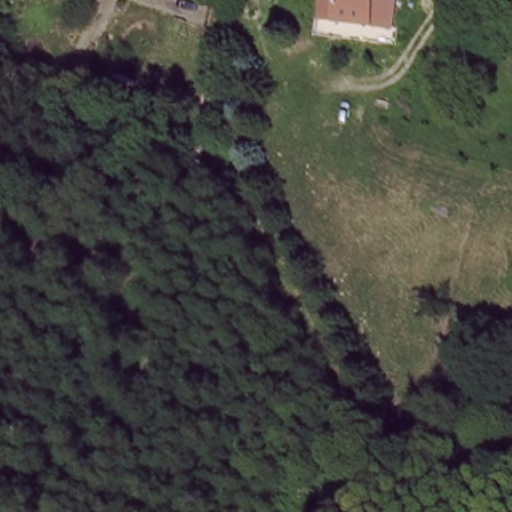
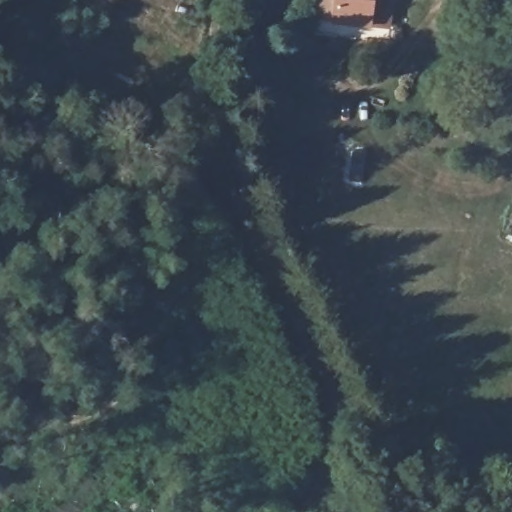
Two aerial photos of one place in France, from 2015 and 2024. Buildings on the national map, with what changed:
unchanged [(318,18),(319,0),(395,0),(394,24),(318,18)]
unchanged [(479,27),(464,24),(468,11),(483,13),(482,16),(479,27)]

